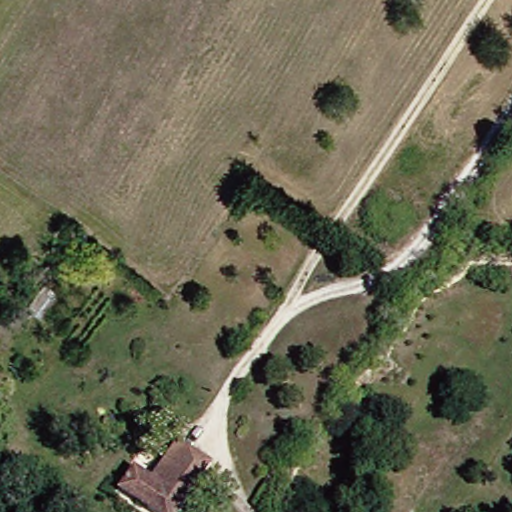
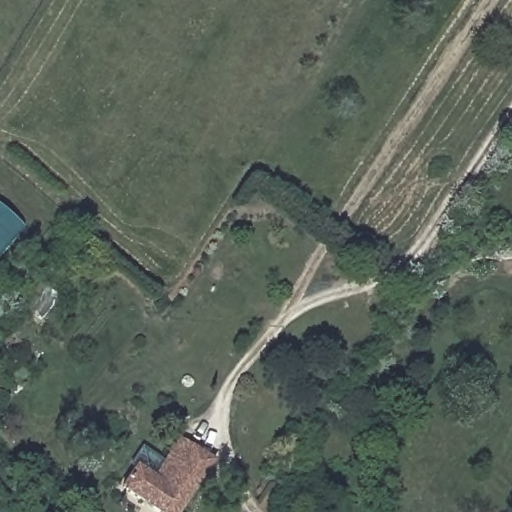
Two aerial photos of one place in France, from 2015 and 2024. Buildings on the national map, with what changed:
new [(23,228),(0,254),(0,207),(23,228)]
unchanged [(0,388),(0,381),(3,384),(0,388)]
unchanged [(174,443),(198,460),(163,512),(141,512),(105,488),(124,462),(149,478),(174,443)]

